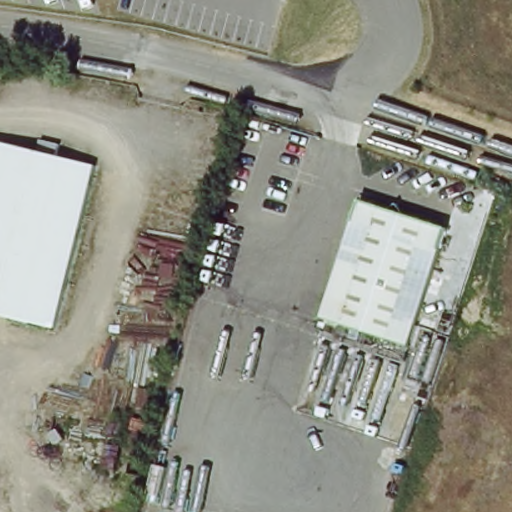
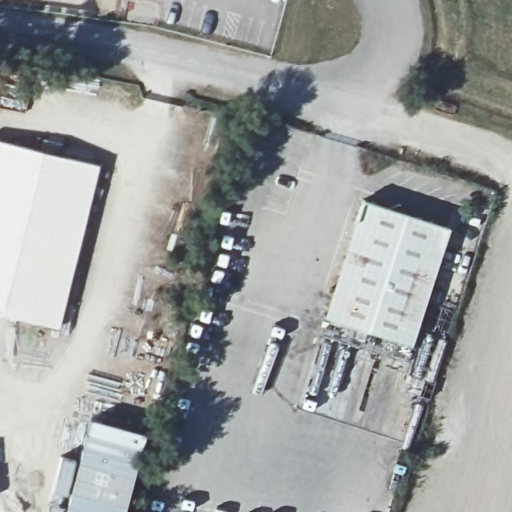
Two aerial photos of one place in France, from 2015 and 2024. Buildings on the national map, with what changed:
unchanged [(55,328),(0,314),(0,141),(95,165),(55,328)]
unchanged [(323,314),(328,299),(363,198),(452,228),(412,342),(331,317),(323,314)]
new [(66,496),(52,492),(60,455),(76,460),(89,416),(146,432),(124,512),(46,512),(50,500),(64,504),(66,496)]

